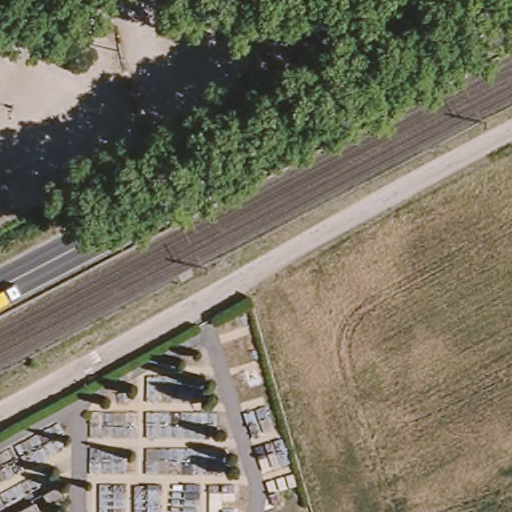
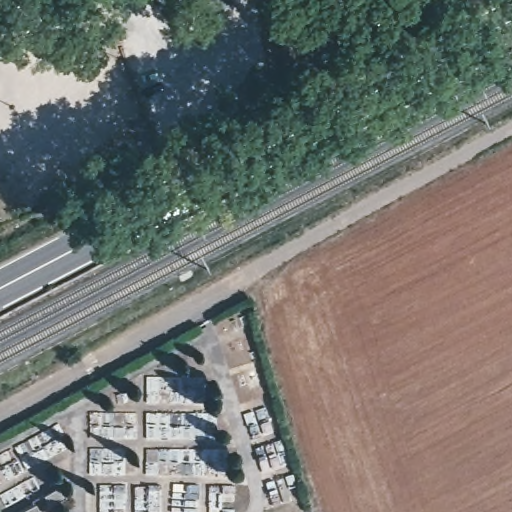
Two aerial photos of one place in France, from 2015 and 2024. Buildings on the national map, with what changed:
unchanged [(404,0),(408,27),(373,46),(369,4),(404,0)]
unchanged [(335,27),(317,28),(314,11),(332,8),(335,27)]
unchanged [(52,496),(46,483),(63,477),(67,488),(52,496)]
unchanged [(38,502),(43,512),(21,512),(38,502)]

